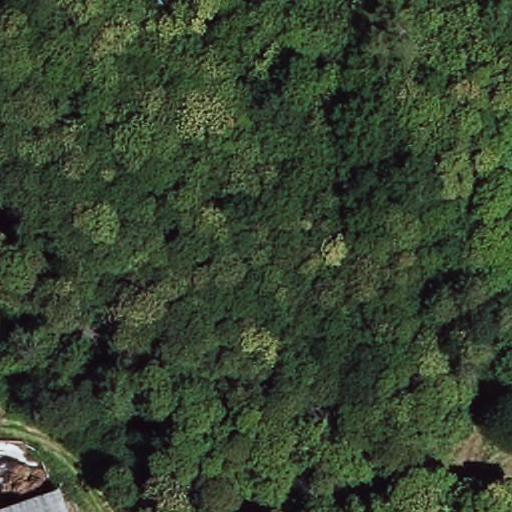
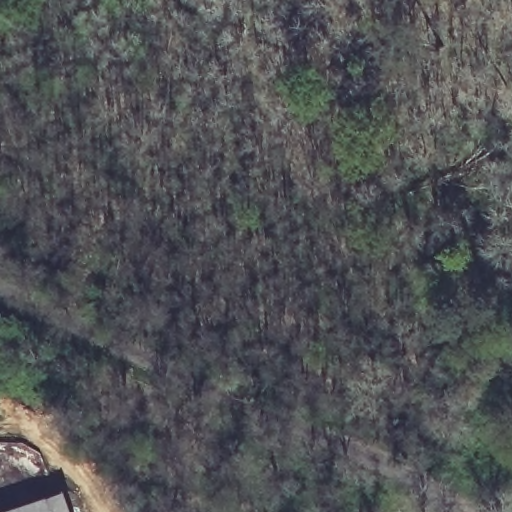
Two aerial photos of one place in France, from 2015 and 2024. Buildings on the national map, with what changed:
unchanged [(58,496),(64,512),(14,512),(58,496)]

